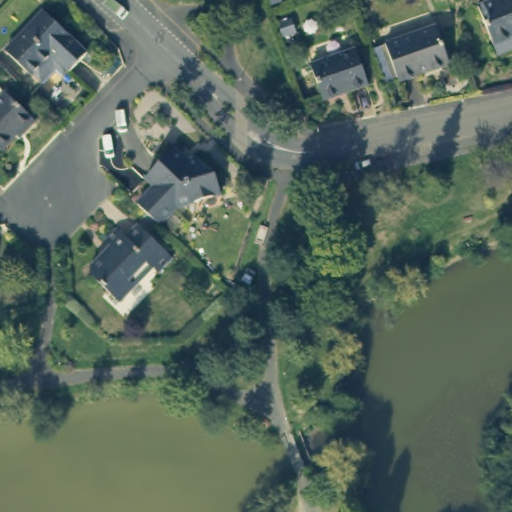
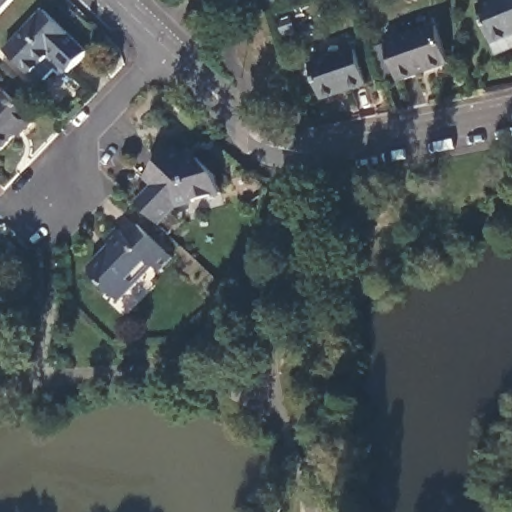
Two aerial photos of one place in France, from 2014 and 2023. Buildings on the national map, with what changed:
unchanged [(512,37),(495,43),(481,1),(485,0),(512,0),(512,37)]
unchanged [(60,68),(42,84),(32,74),(9,51),(45,9),(89,50),(72,68),(67,74),(60,68)]
unchanged [(449,66),(401,83),(387,46),(434,26),(449,66)]
unchanged [(359,47),(371,83),(328,97),(317,64),(359,47)]
unchanged [(37,118),(28,127),(24,124),(2,146),(0,145),(0,99),(9,90),(37,118)]
unchanged [(151,181),(145,175),(174,147),(179,153),(176,156),(182,162),(197,159),(215,175),(219,193),(171,205),(156,222),(134,201),(151,181)]
unchanged [(176,256),(161,271),(155,266),(121,299),(94,274),(96,266),(105,257),(109,260),(119,250),(110,240),(121,230),(132,239),(143,225),(176,256)]

